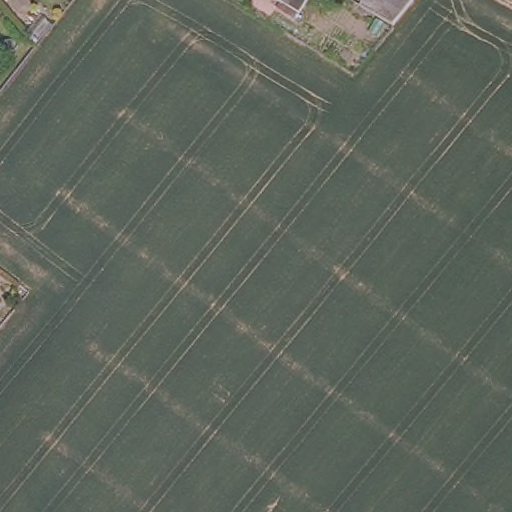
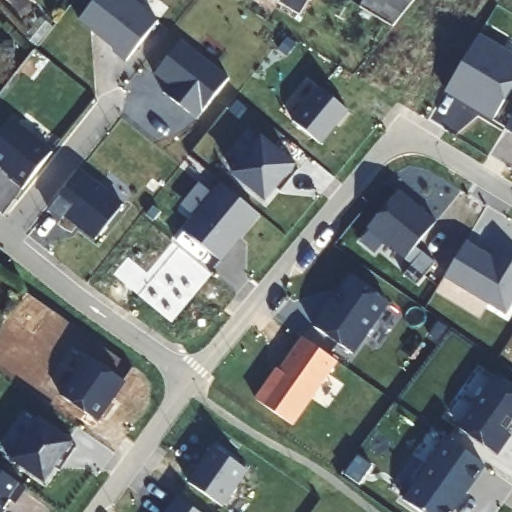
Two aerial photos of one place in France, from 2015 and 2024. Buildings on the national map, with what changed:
new [(113,53),(115,50),(79,21),(96,0),(132,0),(158,21),(127,62),(113,53)]
unchanged [(271,0),(306,0),(295,16),(285,10),(271,0)]
unchanged [(356,7),(355,6),(360,0),(407,0),(387,27),(356,7)]
new [(445,93),(480,35),(512,53),(512,89),(493,121),(445,93)]
new [(165,93),(170,86),(155,74),(182,41),(229,77),(197,118),(165,93)]
new [(294,121),(320,89),(350,111),(322,145),(294,121)]
new [(507,130),(512,120),(512,133),(507,130)]
new [(25,188),(0,168),(0,142),(17,121),(53,151),(25,188)]
new [(267,204),(230,174),(262,135),(298,165),(267,204)]
new [(125,203),(93,244),(50,210),(82,169),(125,203)]
new [(221,184),(260,215),(222,261),(183,230),(221,184)]
new [(383,244),(375,255),(360,243),(370,232),(367,229),(398,191),(437,221),(405,260),(383,244)]
new [(492,256),(495,250),(512,259),(512,308),(507,316),(446,279),(468,242),(492,256)]
new [(115,276),(129,258),(147,274),(173,243),(212,274),(172,324),(115,276)]
new [(332,297),(340,302),(345,294),(341,291),(350,277),(390,304),(356,354),(313,324),(332,297)]
new [(302,337),(338,362),(293,426),(257,401),(302,337)]
new [(60,396),(87,356),(127,382),(98,423),(60,396)]
new [(492,375),(512,388),(512,416),(511,416),(498,434),(503,438),(493,451),(457,425),(492,375)]
new [(10,460),(40,417),(76,442),(45,485),(10,460)]
new [(482,461),(464,486),(462,485),(452,499),(455,500),(446,512),(425,512),(402,497),(445,436),(482,461)]
new [(189,482),(213,447),(249,471),(225,507),(189,482)]
new [(17,504),(10,499),(0,506),(6,510),(4,512),(0,512),(0,470),(27,489),(17,504)]
new [(198,512),(166,512),(177,497),(198,512)]

